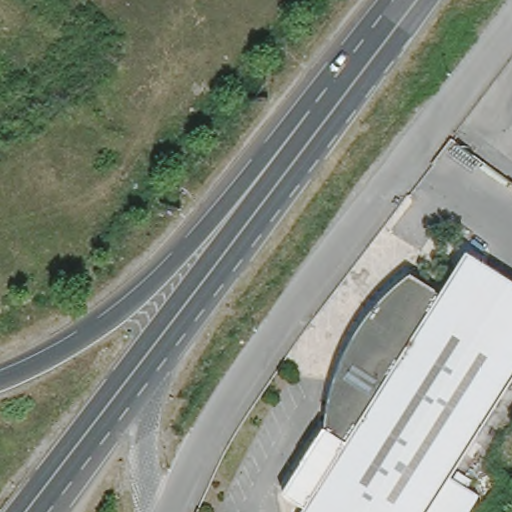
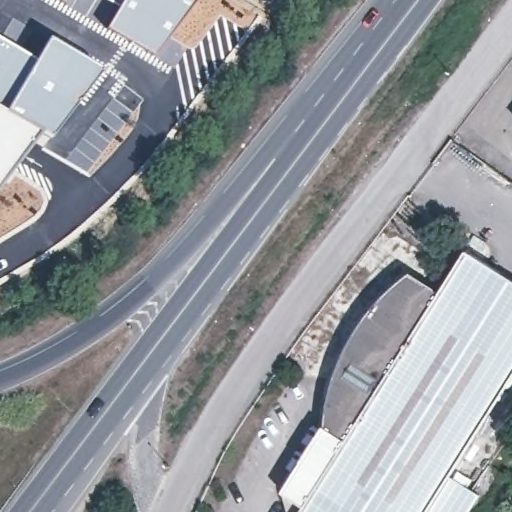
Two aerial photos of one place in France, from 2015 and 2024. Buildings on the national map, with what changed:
new [(87,16),(59,0),(97,0),(87,16)]
new [(103,0),(195,0),(154,57),(106,28),(117,7),(103,0)]
new [(6,109),(0,106),(0,36),(36,58),(6,109)]
new [(36,58),(49,37),(103,68),(74,109),(49,138),(39,131),(6,109),(36,58)]
new [(39,131),(0,184),(0,106),(6,109),(39,131)]
unchanged [(469,445),(450,474),(477,493),(466,512),(300,512),(305,504),(284,490),(324,427),(330,399),(337,373),(345,351),(360,323),(375,303),(388,289),(400,278),(410,272),(440,291),(466,249),(512,279),(512,376),(469,445)]

